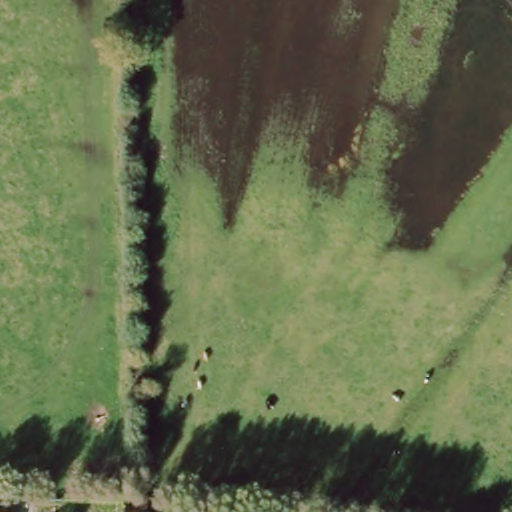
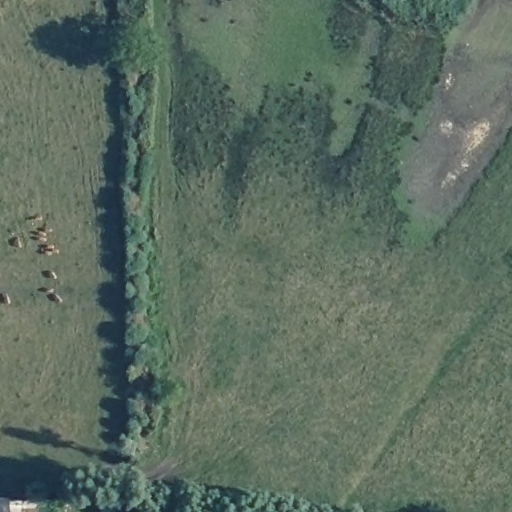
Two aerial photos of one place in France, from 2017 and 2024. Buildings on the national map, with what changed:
unchanged [(0,512),(0,505),(2,505),(2,512),(0,512)]
unchanged [(136,512),(127,512),(129,508),(136,512)]

